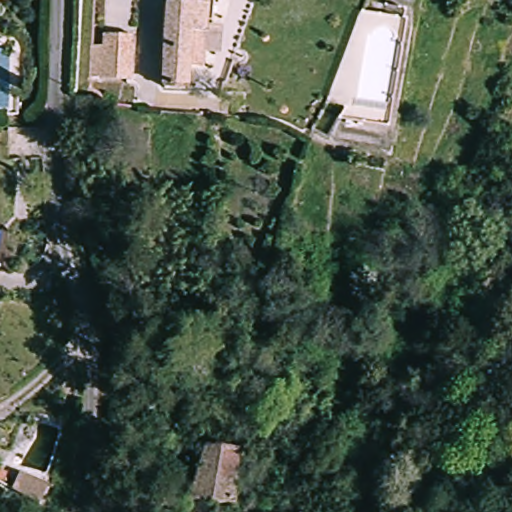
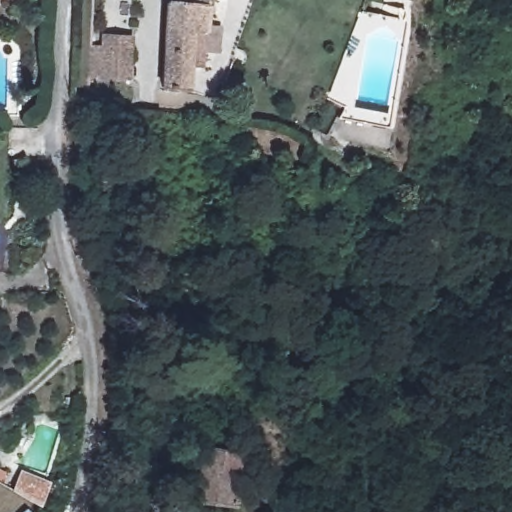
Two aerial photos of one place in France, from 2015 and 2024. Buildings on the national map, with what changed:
unchanged [(194,66),(193,86),(161,87),(163,0),(214,0),(214,1),(207,1),(206,28),(205,66),(194,66)]
unchanged [(135,83),(100,81),(103,33),(137,35),(135,83)]
unchanged [(0,281),(0,260),(7,260),(8,281),(0,281)]
unchanged [(191,500),(203,449),(239,451),(234,504),(191,500)]
unchanged [(51,481),(39,509),(8,496),(17,469),(51,481)]

